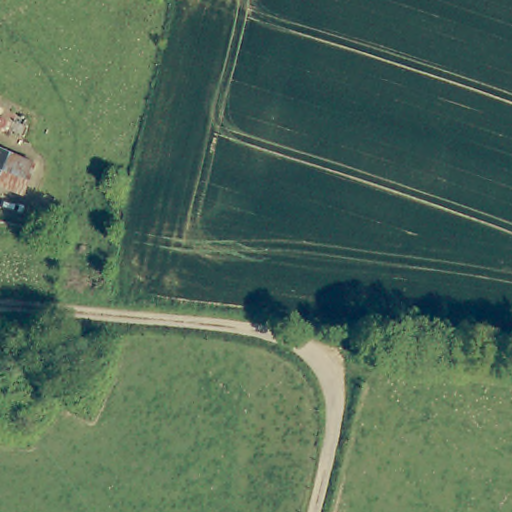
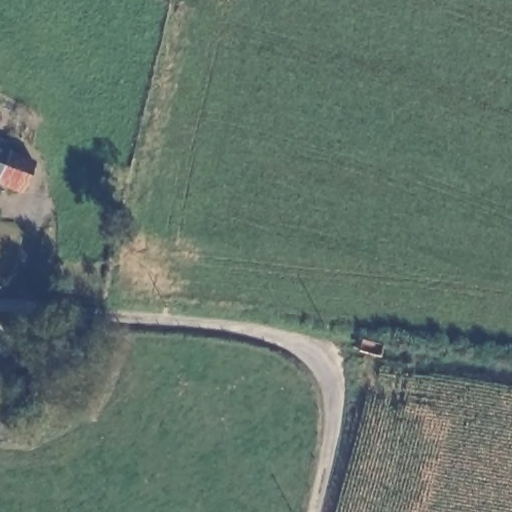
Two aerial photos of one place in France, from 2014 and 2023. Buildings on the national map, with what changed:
unchanged [(37,160),(25,187),(0,179),(0,144),(37,160)]

